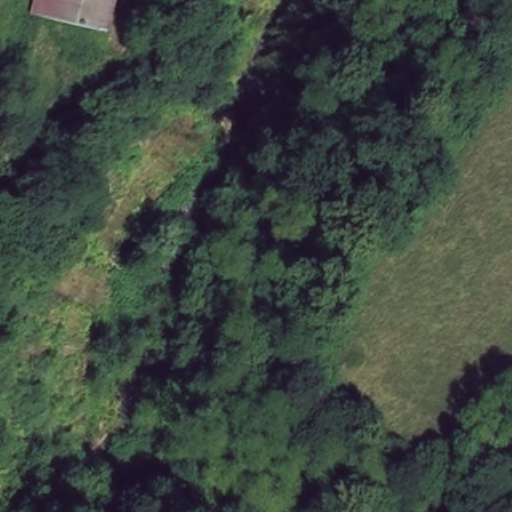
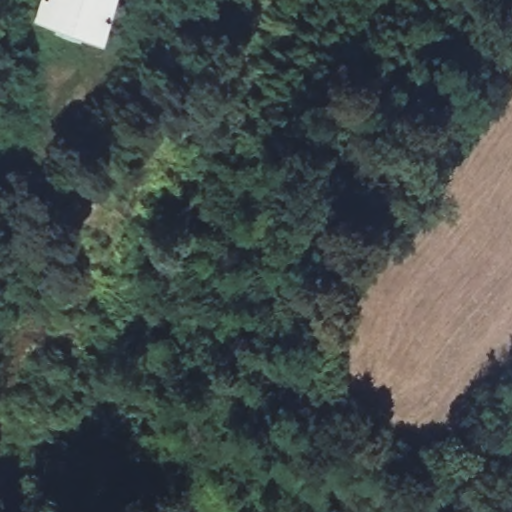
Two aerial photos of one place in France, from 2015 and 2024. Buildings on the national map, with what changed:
unchanged [(45,9),(37,7),(39,0),(113,0),(106,25),(45,9)]

